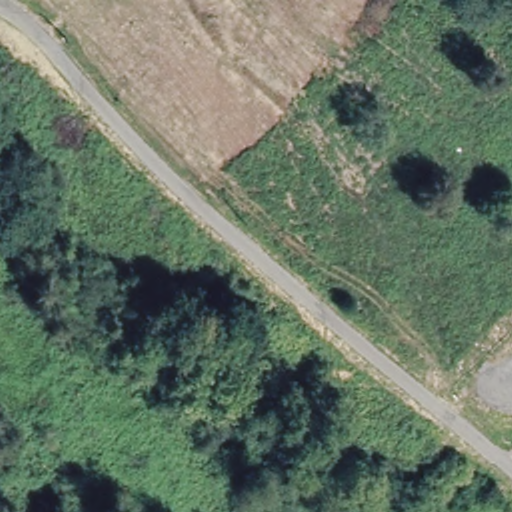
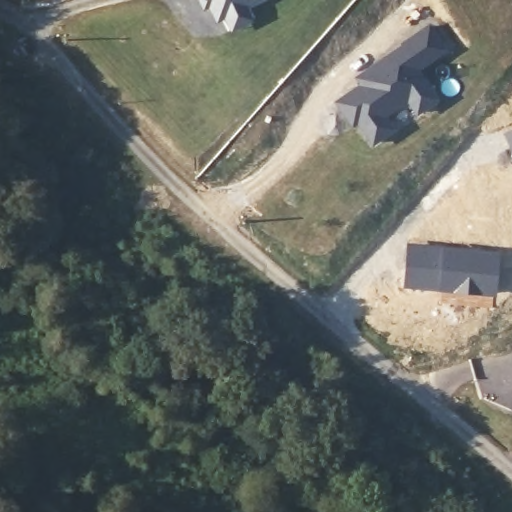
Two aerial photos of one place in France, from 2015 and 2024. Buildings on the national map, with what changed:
unchanged [(235,29),(228,16),(220,20),(213,6),(206,10),(200,0),(210,0),(258,0),(247,6),(254,19),(235,29)]
new [(355,77),(365,71),(401,45),(400,44),(426,25),(442,49),(414,69),(434,98),(415,111),(406,99),(381,115),(390,129),(371,142),(356,120),(351,124),(335,102),(360,85),(355,77)]
new [(512,128),(512,157),(502,131),(512,128)]
new [(406,242),(499,250),(495,296),(402,287),(406,242)]

